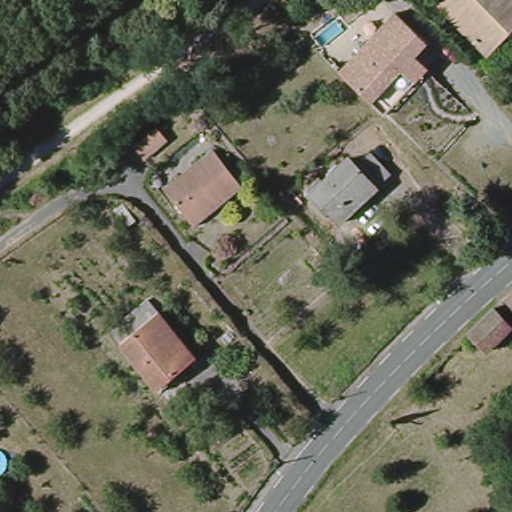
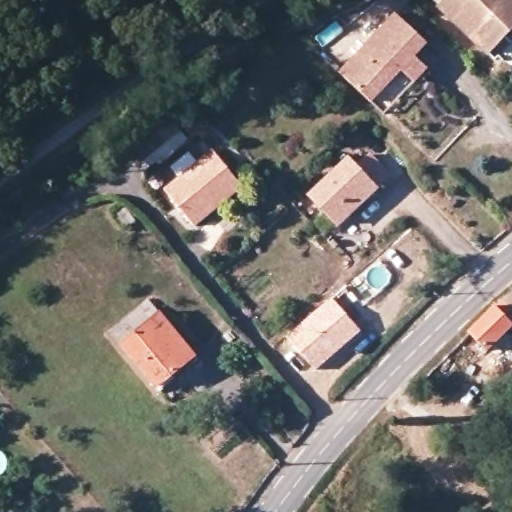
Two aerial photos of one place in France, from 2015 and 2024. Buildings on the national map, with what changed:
unchanged [(487,53),(439,5),(444,0),(512,0),(512,31),(487,53)]
unchanged [(371,74),(358,62),(402,19),(415,31),(371,74)]
unchanged [(447,61),(387,119),(356,90),(371,74),(415,31),(447,61)]
unchanged [(144,132),(167,114),(175,125),(152,144),(148,138),(135,149),(130,143),(144,132)]
unchanged [(243,187),(224,202),(222,200),(207,212),(211,217),(197,227),(169,191),(216,152),(243,187)]
unchanged [(313,198),(352,163),(359,171),(373,159),(392,180),(340,228),(313,198)]
new [(331,296),(361,330),(315,370),(285,336),(331,296)]
unchanged [(507,305),(512,301),(512,313),(507,305)]
unchanged [(160,312),(205,355),(181,377),(186,383),(171,396),(127,350),(160,312)]
unchanged [(462,348),(496,315),(497,313),(512,330),(512,334),(488,357),(478,348),(470,355),(462,348)]

